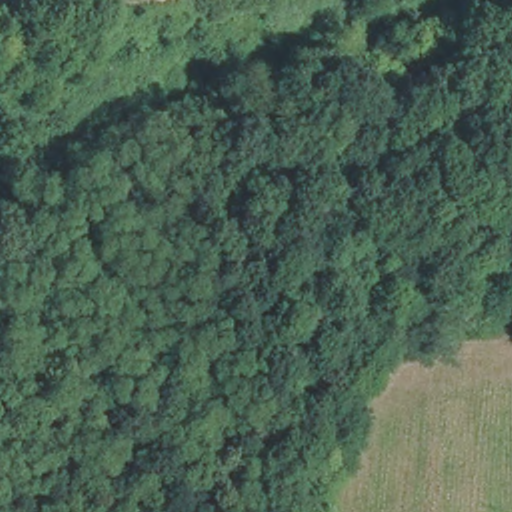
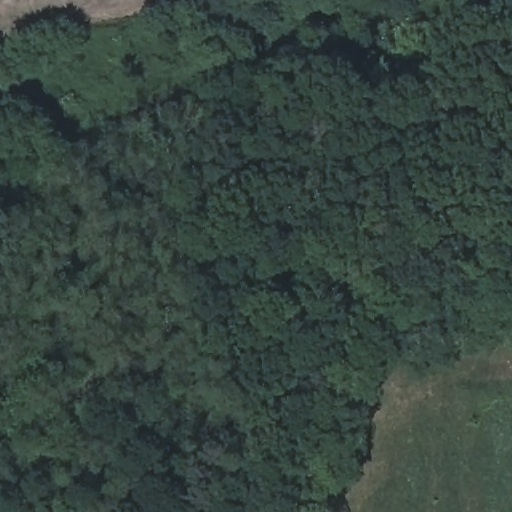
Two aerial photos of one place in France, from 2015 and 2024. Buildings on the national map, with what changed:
[]

